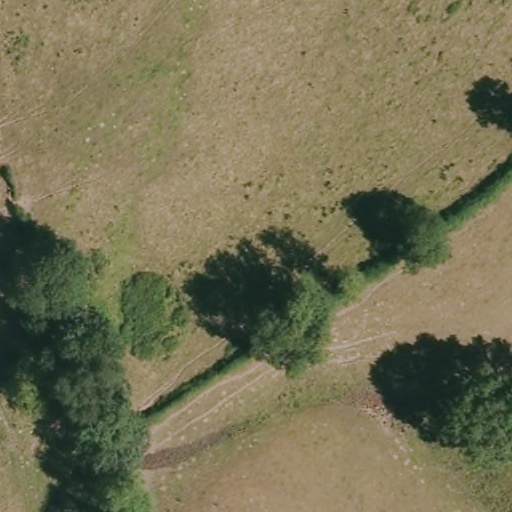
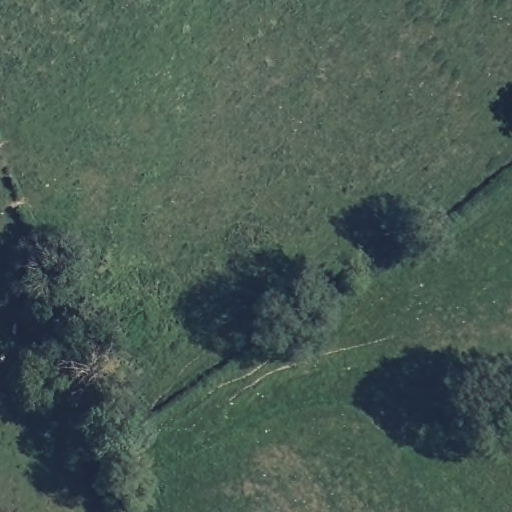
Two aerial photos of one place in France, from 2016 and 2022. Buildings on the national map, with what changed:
[]

